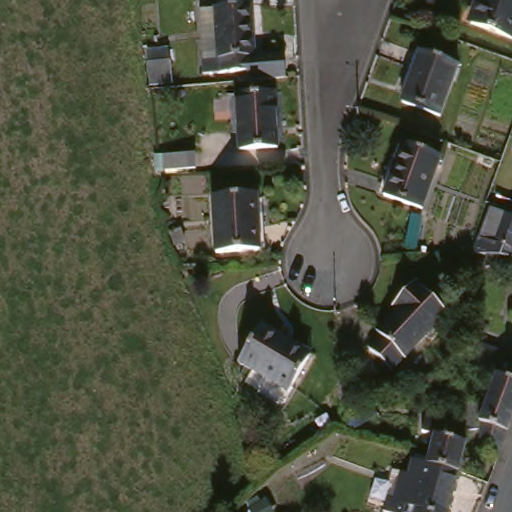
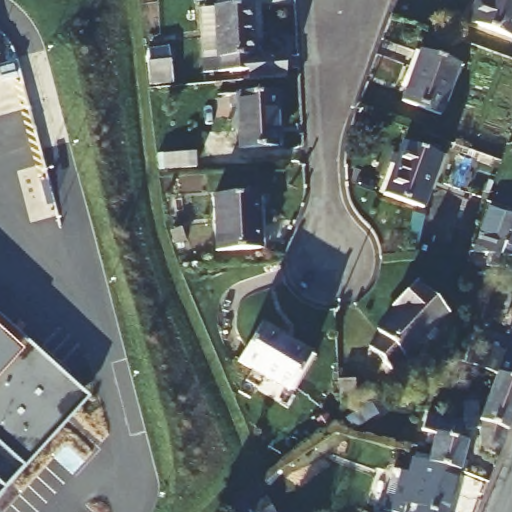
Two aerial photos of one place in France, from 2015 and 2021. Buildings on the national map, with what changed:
unchanged [(278,56),(279,81),(246,83),(245,83),(245,73),(200,76),(196,14),(209,13),(209,10),(213,10),(213,1),(231,0),(239,0),(239,9),(249,8),(251,58),(278,56)]
unchanged [(477,0),(512,0),(512,34),(509,42),(466,27),(477,0)]
unchanged [(150,81),(149,59),(148,47),(171,46),(171,59),(172,81),(150,81)]
unchanged [(402,105),(420,56),(458,70),(440,119),(402,105)]
unchanged [(235,147),(232,94),(271,92),(274,145),(235,147)]
unchanged [(379,198),(398,147),(437,162),(417,212),(379,198)]
unchanged [(165,168),(164,154),(195,151),(196,166),(165,168)]
unchanged [(212,255),(209,201),(253,198),(256,252),(212,255)]
unchanged [(493,244),(476,237),(487,211),(512,220),(512,246),(510,251),(492,245),(493,244)]
unchanged [(483,257),(471,256),(474,248),(480,249),(480,251),(495,253),(494,259),(493,270),(482,269),(483,257)]
unchanged [(366,352),(378,340),(375,336),(395,314),(389,308),(412,285),(442,316),(387,373),(366,352)]
unchanged [(284,397),(235,367),(258,328),(276,339),(273,343),(304,363),(284,397)]
new [(17,348),(23,341),(88,399),(24,468),(0,446),(0,332),(17,348)]
unchanged [(492,378),(470,369),(458,364),(461,358),(462,348),(475,353),(477,348),(512,361),(512,411),(493,461),(476,454),(476,425),(492,378)]
unchanged [(340,407),(339,380),(354,379),(355,406),(340,407)]
unchanged [(460,433),(459,408),(472,407),(473,432),(460,433)]
unchanged [(424,467),(427,455),(429,448),(422,447),(425,437),(419,435),(422,421),(458,431),(454,444),(462,446),(454,475),(424,467)]
unchanged [(387,478),(395,480),(396,474),(405,477),(408,463),(424,467),(454,475),(445,512),(379,512),(387,478)]
new [(0,493),(0,485),(4,489),(0,493)]
unchanged [(267,505),(276,509),(275,512),(264,512),(267,505)]

